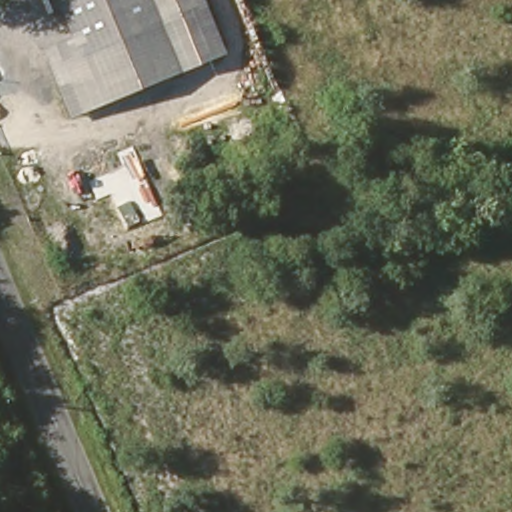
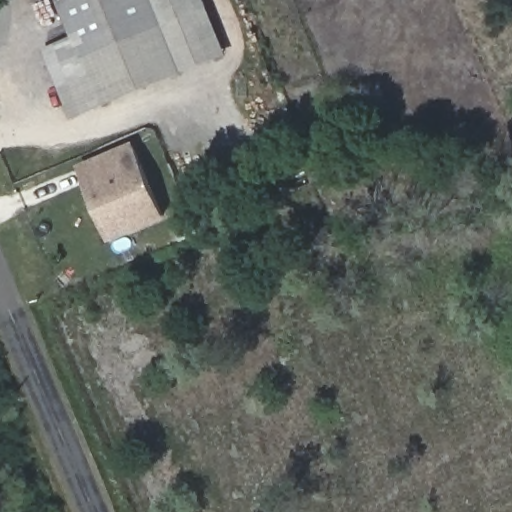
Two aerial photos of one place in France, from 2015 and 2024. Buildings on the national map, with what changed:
unchanged [(68,66),(58,44),(72,36),(57,0),(205,0),(209,10),(125,43),(68,66)]
unchanged [(229,56),(70,120),(40,50),(58,44),(68,66),(125,43),(209,10),(229,56)]
new [(109,242),(79,166),(134,143),(168,219),(109,242)]

